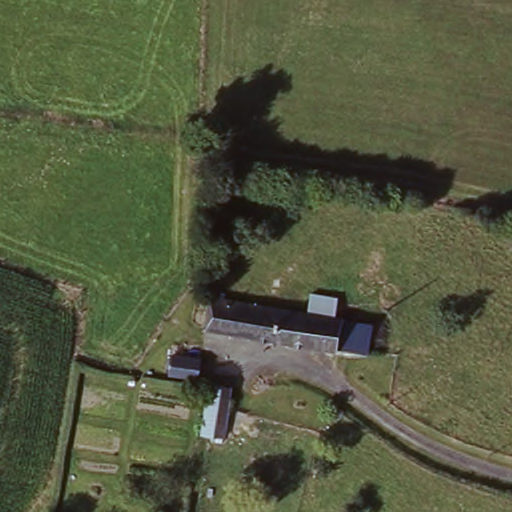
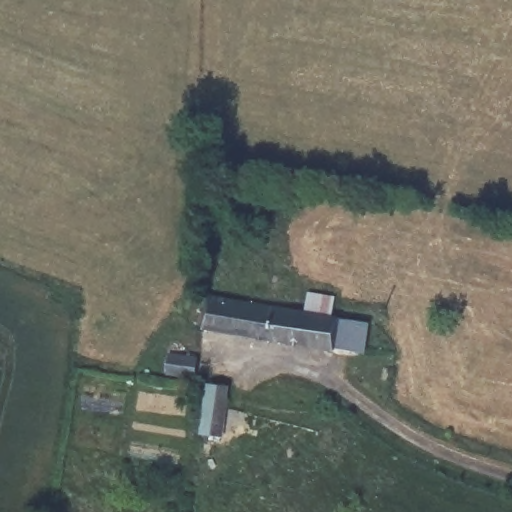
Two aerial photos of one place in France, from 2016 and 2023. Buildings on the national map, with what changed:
unchanged [(205,335),(209,304),(308,318),(312,297),(337,301),(335,322),(339,322),(333,354),(205,335)]
unchanged [(171,360),(200,361),(196,382),(169,379),(171,360)]
unchanged [(210,388),(229,392),(222,441),(204,439),(210,388)]

